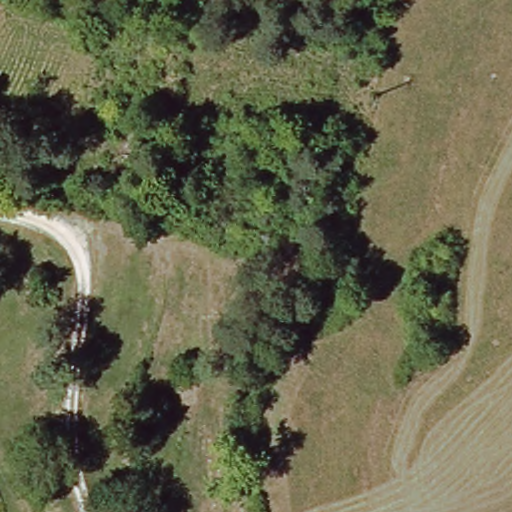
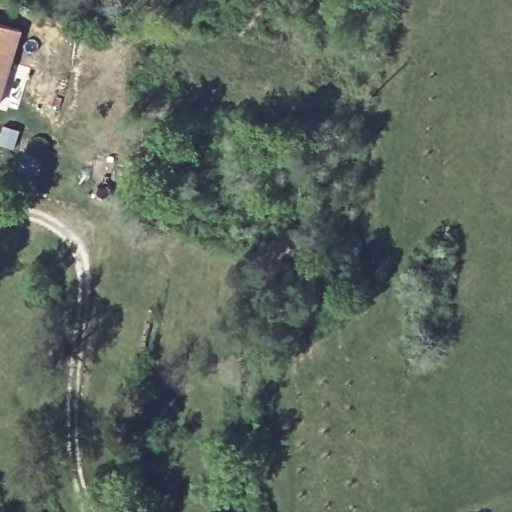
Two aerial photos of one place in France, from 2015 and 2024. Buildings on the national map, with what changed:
new [(0,95),(0,26),(19,31),(0,95)]

